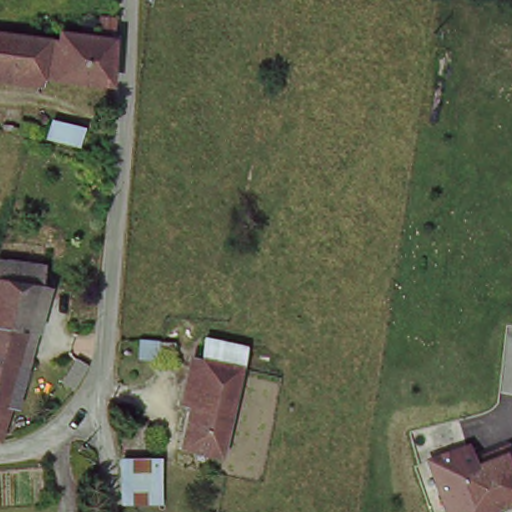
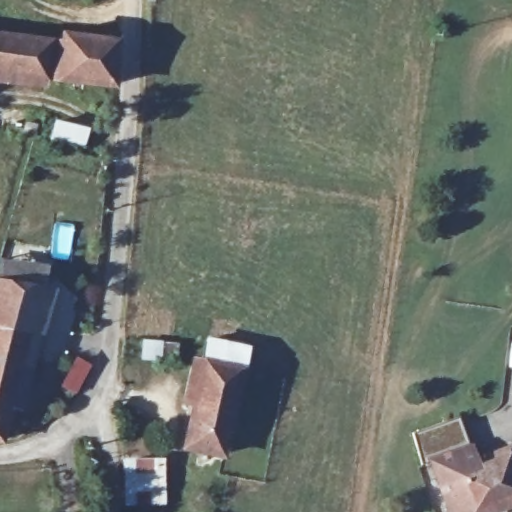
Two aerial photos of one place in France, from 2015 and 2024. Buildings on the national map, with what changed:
unchanged [(0,73),(0,35),(54,42),(55,33),(111,41),(109,87),(0,73)]
unchanged [(40,284),(0,274),(0,252),(46,264),(40,284)]
unchanged [(0,431),(0,274),(40,284),(0,431)]
unchanged [(209,344),(246,351),(226,460),(189,452),(209,344)]
unchanged [(512,464),(512,496),(475,512),(454,512),(434,465),(461,454),(471,471),(508,455),(512,464)]
unchanged [(163,507),(124,506),(124,460),(161,456),(163,507)]

